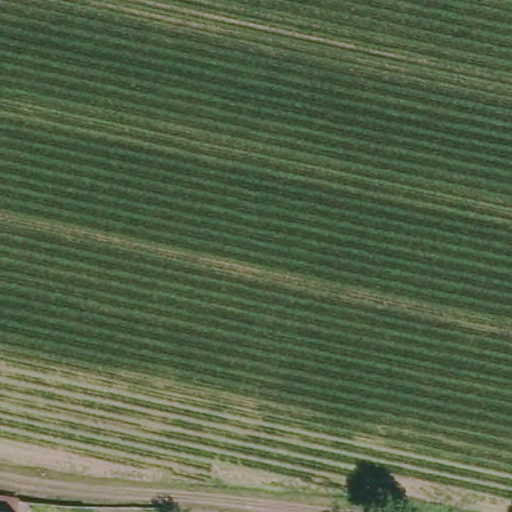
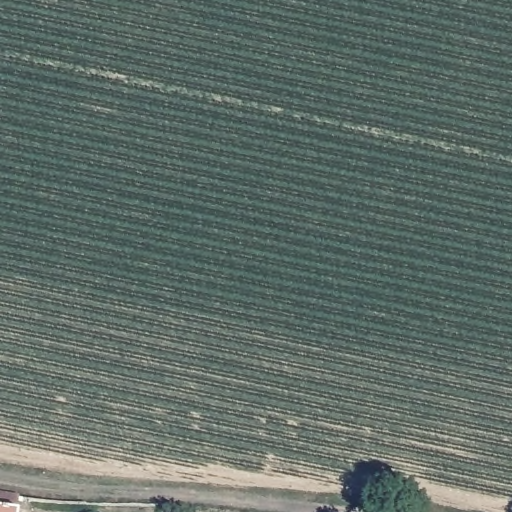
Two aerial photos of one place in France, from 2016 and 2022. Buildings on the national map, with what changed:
unchanged [(18,512),(0,512),(0,492),(19,496),(18,512)]

